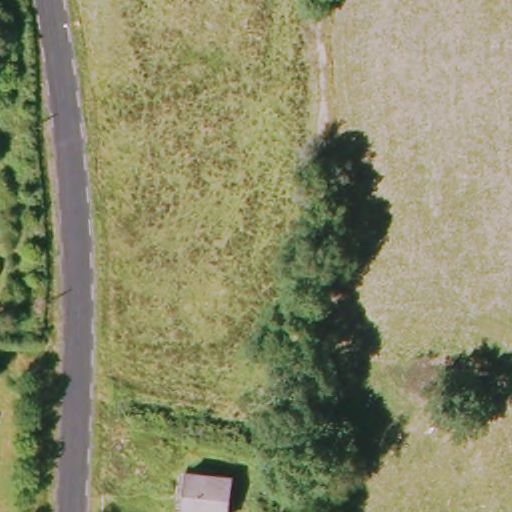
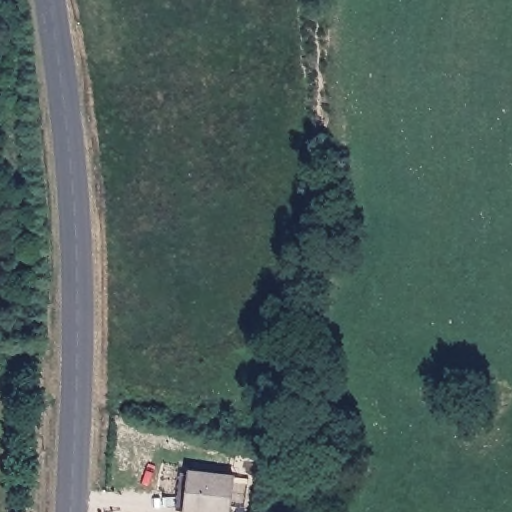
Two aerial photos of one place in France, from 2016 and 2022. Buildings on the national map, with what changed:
unchanged [(228,512),(183,512),(187,473),(233,477),(228,512)]

